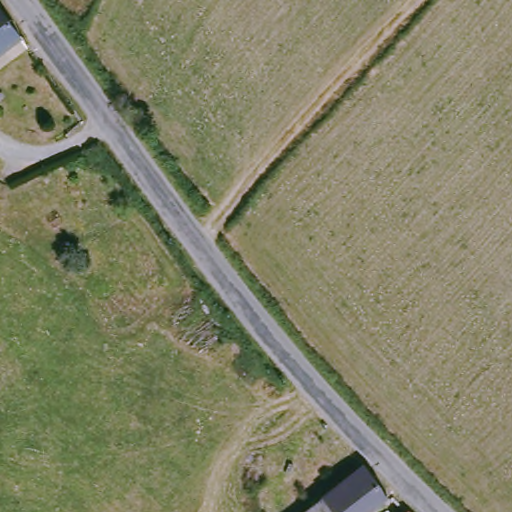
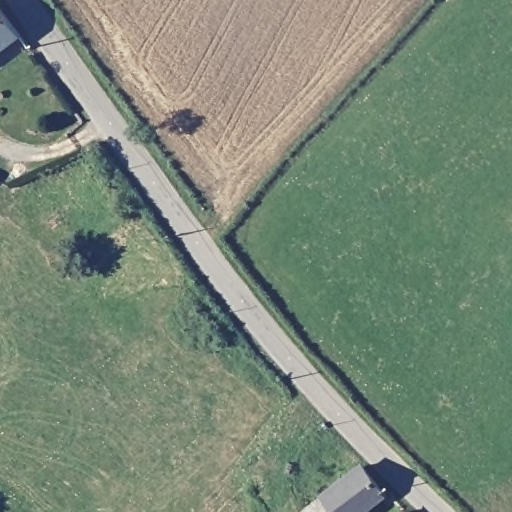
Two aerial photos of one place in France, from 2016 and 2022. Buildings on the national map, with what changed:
unchanged [(0,61),(0,2),(28,43),(0,61)]
unchanged [(374,512),(311,512),(370,467),(395,496),(374,512)]

